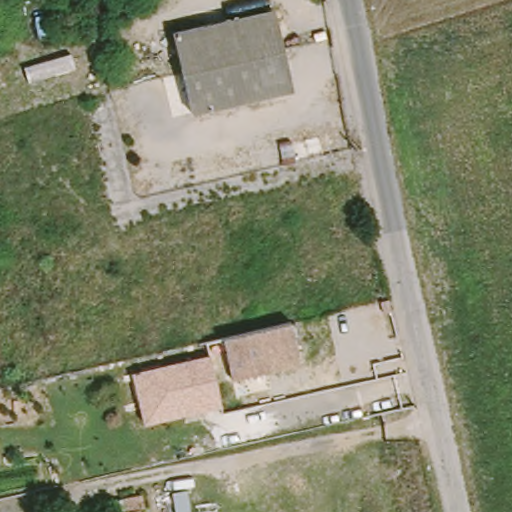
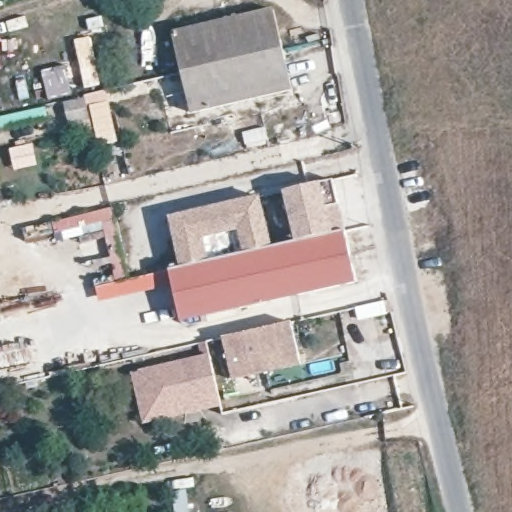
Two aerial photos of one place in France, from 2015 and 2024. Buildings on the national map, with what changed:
unchanged [(298,93),(196,117),(178,36),(278,13),(298,93)]
new [(115,142),(100,146),(93,119),(68,125),(63,101),(110,90),(113,102),(106,104),(115,142)]
new [(321,182),(333,179),(346,230),(340,232),(296,242),(284,192),(321,182)]
new [(259,197),(272,246),(176,267),(163,218),(259,197)]
new [(354,282),(184,322),(168,272),(176,267),(272,246),(340,232),(354,282)]
unchanged [(298,361),(229,377),(220,334),(288,318),(298,361)]
unchanged [(216,401),(146,416),(136,373),(206,357),(216,401)]
new [(191,512),(175,512),(171,495),(188,492),(191,512)]
unchanged [(143,512),(122,512),(120,500),(140,497),(143,512)]

